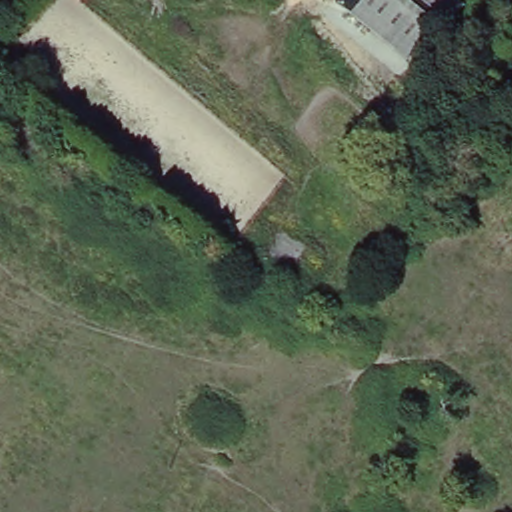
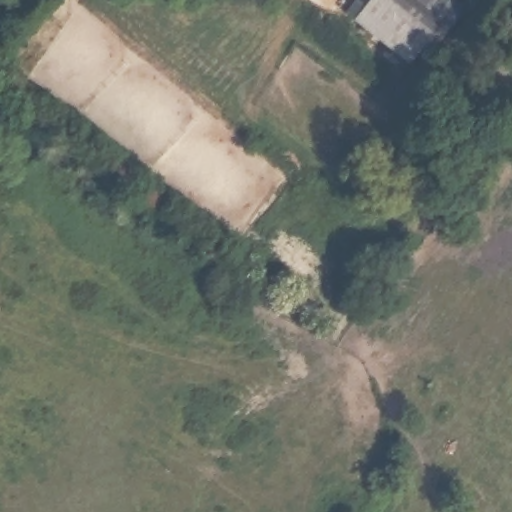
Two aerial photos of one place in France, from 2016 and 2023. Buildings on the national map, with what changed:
unchanged [(380,0),(422,34),(403,56),(348,12),(358,0),(380,0)]
unchanged [(438,14),(446,20),(432,37),(425,31),(422,34),(380,0),(427,0),(441,11),(438,14)]
unchanged [(446,20),(438,14),(441,11),(427,0),(448,0),(457,7),(446,20)]

